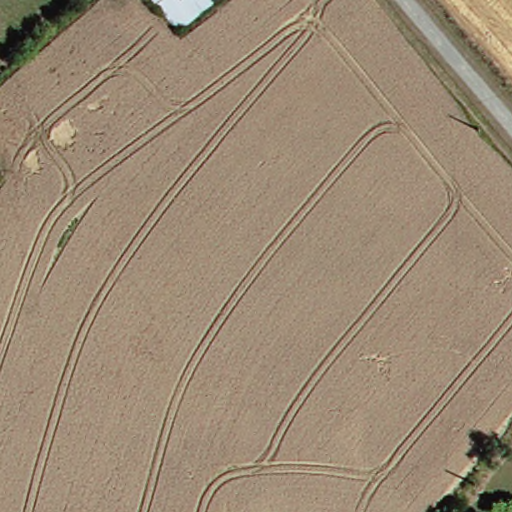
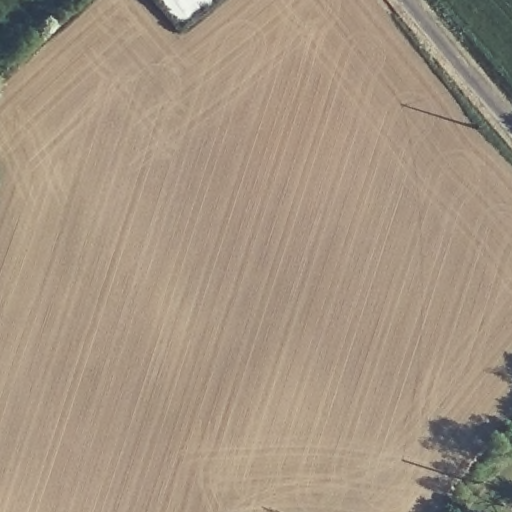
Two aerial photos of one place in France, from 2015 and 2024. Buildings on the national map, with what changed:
unchanged [(217,0),(178,31),(152,0),(217,0)]

